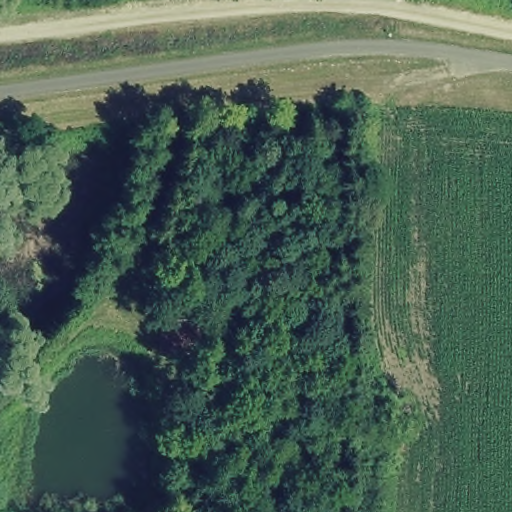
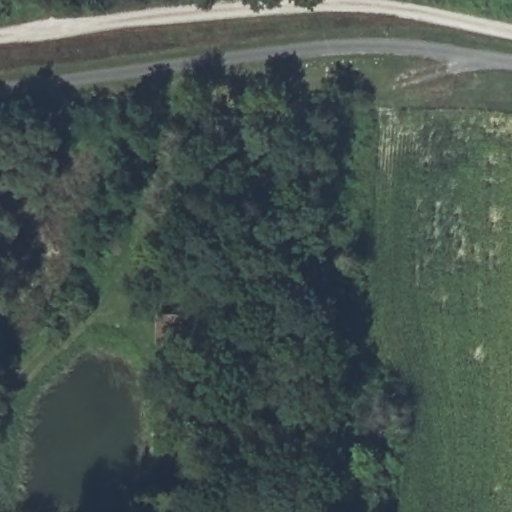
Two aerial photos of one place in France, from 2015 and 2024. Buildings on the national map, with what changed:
unchanged [(196,313),(197,346),(158,347),(158,315),(196,313)]

